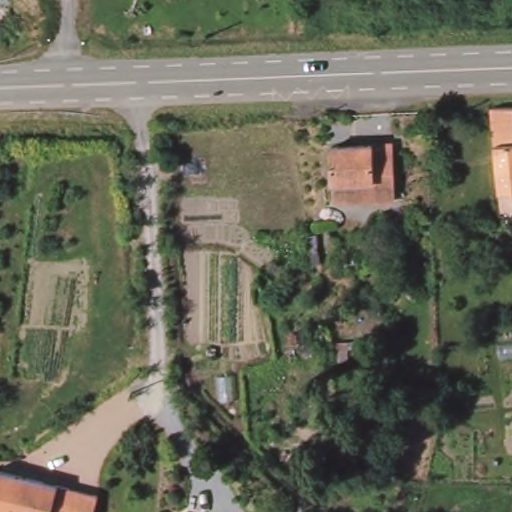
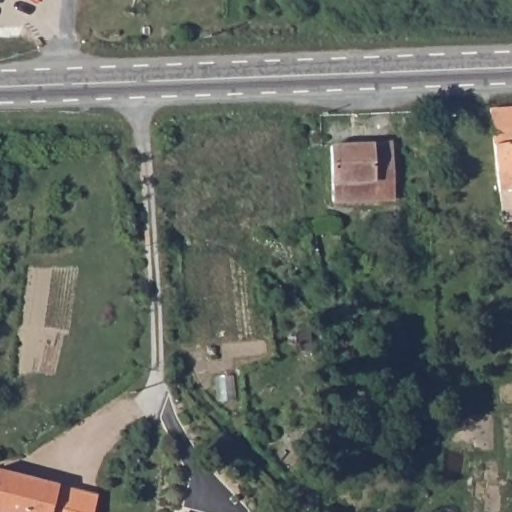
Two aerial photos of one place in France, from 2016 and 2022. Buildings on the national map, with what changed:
unchanged [(512,190),(492,192),(486,108),(512,107),(512,190)]
unchanged [(328,150),(379,148),(389,147),(392,200),(382,201),(330,203),(328,150)]
unchanged [(93,493),(90,512),(0,512),(0,475),(93,493)]

